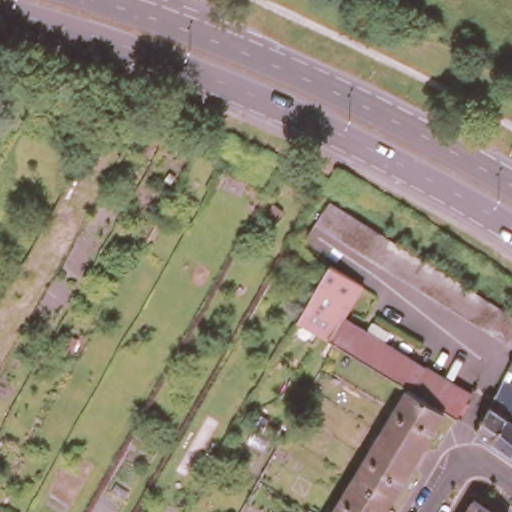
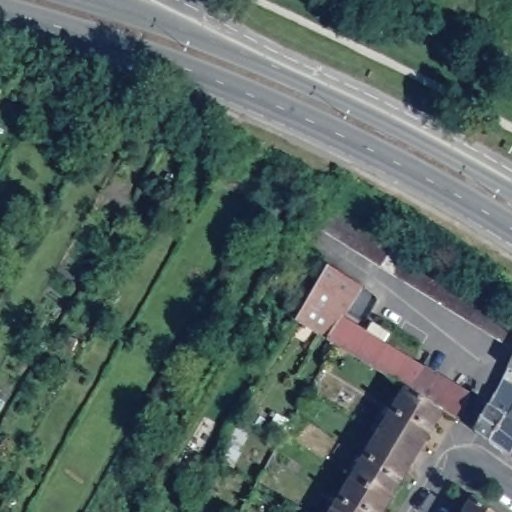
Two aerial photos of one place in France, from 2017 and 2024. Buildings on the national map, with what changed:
unchanged [(436,296),(426,290),(414,283),(403,276),(392,270),(381,263),(369,256),(359,249),(348,242),(336,235),(326,229),(314,222),(328,200),(339,207),(350,214),(361,220),(371,227),(384,234),(394,241),(405,247),(417,255),(428,261),(439,268),(450,275),(461,281),(473,288),(483,295),(494,302),(505,308),(512,313),(512,343),(504,337),(492,330),(481,323),(469,316),(459,310),(448,303),(436,296)]
unchanged [(341,315),(364,328),(369,319),(388,330),(383,340),(468,391),(454,414),(442,406),(406,384),(396,378),(334,340),(296,316),(295,315),(327,262),(361,283),(341,315)]
unchanged [(509,364),(508,363),(512,355),(512,365),(509,364)]
unchanged [(489,400),(500,379),(507,383),(494,402),(489,400)]
unchanged [(388,496),(351,475),(406,384),(442,406),(388,496)]
unchanged [(504,417),(511,406),(512,408),(512,455),(509,453),(489,439),(474,428),(487,405),(504,417)]
unchanged [(388,496),(378,512),(329,512),(351,475),(388,496)]
unchanged [(501,512),(466,512),(477,495),(501,512)]

